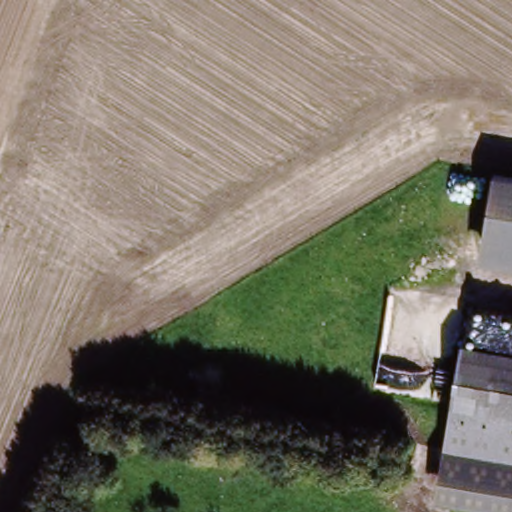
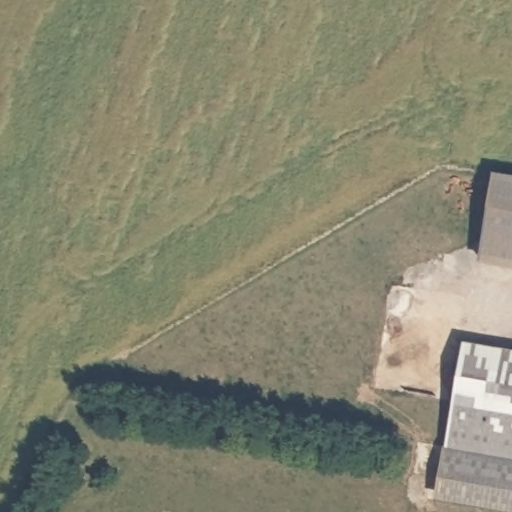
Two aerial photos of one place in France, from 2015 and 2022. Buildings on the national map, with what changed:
unchanged [(512,175),(512,217),(484,214),(491,170),(512,175)]
unchanged [(484,214),(512,217),(512,248),(479,241),(484,214)]
unchanged [(479,241),(512,248),(512,268),(476,261),(479,241)]
unchanged [(461,366),(464,347),(512,356),(512,471),(444,458),(461,366)]
unchanged [(444,458),(512,471),(512,512),(438,498),(444,458)]

